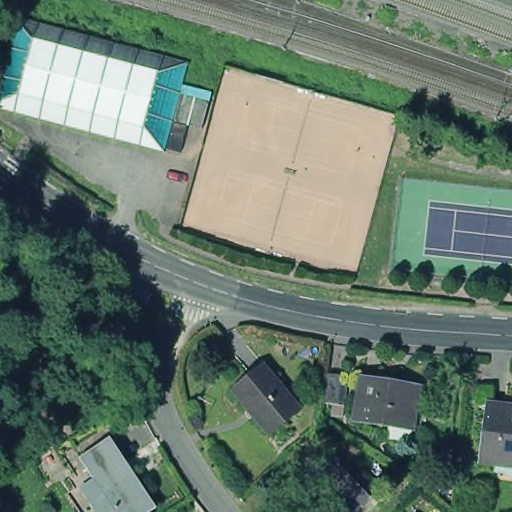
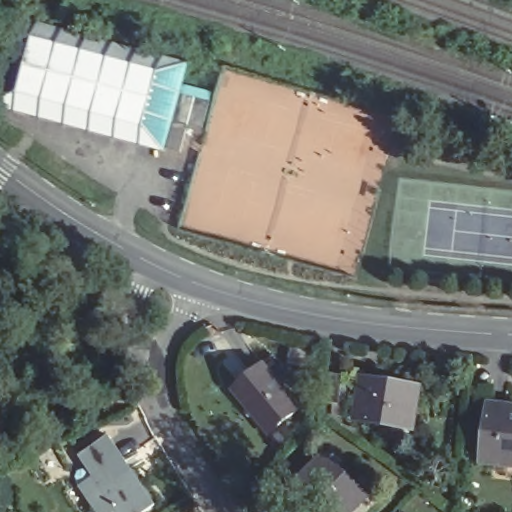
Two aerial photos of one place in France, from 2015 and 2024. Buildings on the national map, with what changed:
unchanged [(164,121),(156,152),(0,109),(0,43),(8,14),(181,60),(175,82),(205,90),(202,99),(194,128),(164,121)]
unchanged [(233,390),(268,363),(302,408),(268,435),(233,390)]
unchanged [(361,377),(418,385),(413,428),(354,418),(361,377)]
unchanged [(352,386),(346,415),(330,412),(336,382),(352,386)]
unchanged [(480,472),(486,415),(512,418),(512,476),(480,472)]
unchanged [(109,431),(154,502),(138,512),(117,512),(105,492),(99,496),(93,488),(100,485),(78,451),(109,431)]
unchanged [(301,488),(330,458),(370,499),(358,512),(324,512),(301,488)]

